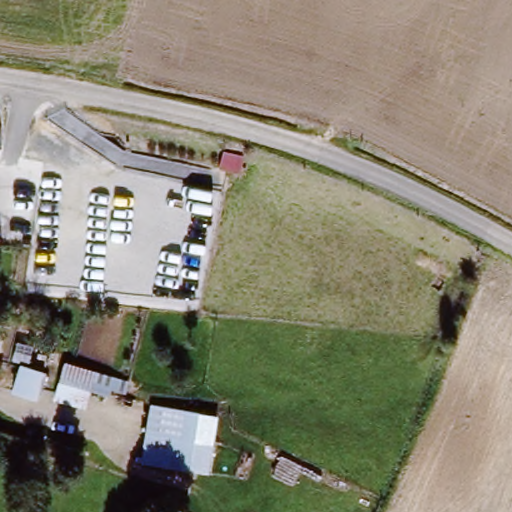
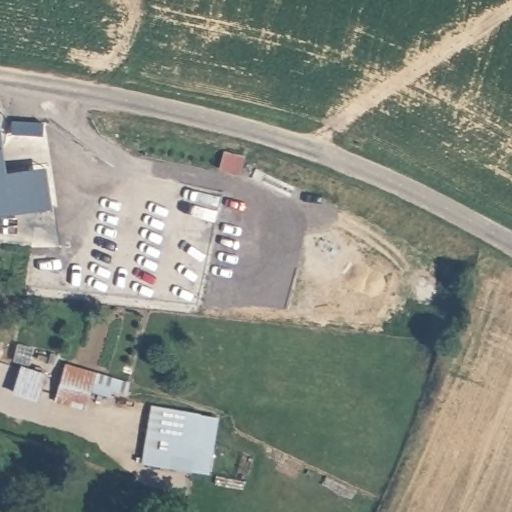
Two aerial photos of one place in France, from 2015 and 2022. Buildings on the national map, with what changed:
new [(52,196),(38,199),(0,207),(0,138),(6,165),(30,160),(44,157),(52,196)]
unchanged [(129,381),(125,393),(110,389),(108,396),(90,390),(84,411),(53,402),(65,363),(129,381)]
unchanged [(20,366),(47,373),(40,401),(12,393),(20,366)]
unchanged [(176,409),(217,416),(209,474),(168,468),(142,463),(150,405),(176,409)]

